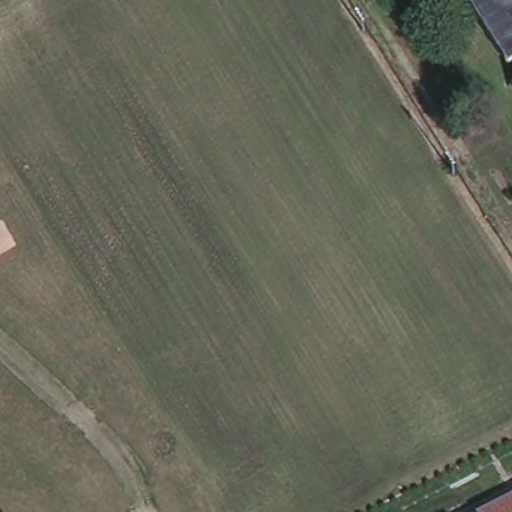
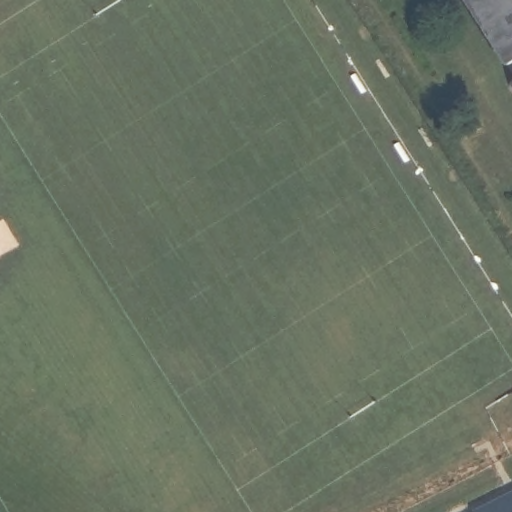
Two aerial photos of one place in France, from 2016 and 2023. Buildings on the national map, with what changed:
unchanged [(510,62),(470,0),(512,0),(512,61),(510,62)]
unchanged [(511,85),(509,82),(512,80),(512,84),(511,85)]
unchanged [(480,510),(512,492),(512,512),(481,512),(480,510)]
unchanged [(481,512),(476,512),(480,510),(481,512)]

